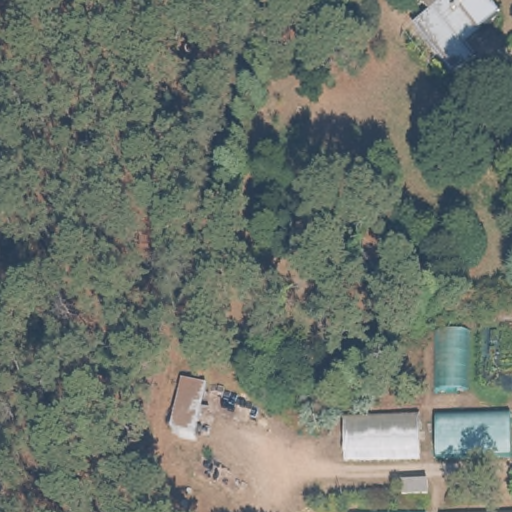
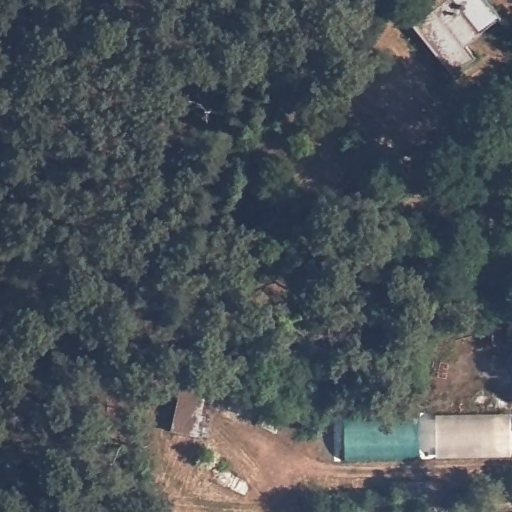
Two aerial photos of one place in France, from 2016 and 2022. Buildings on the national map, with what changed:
unchanged [(469,45),(477,58),(445,82),(402,29),(440,0),(490,0),(502,15),(469,45)]
unchanged [(502,172),(500,131),(512,131),(512,172),(502,172)]
demolished [(442,388),(440,330),(464,329),(466,388),(442,388)]
unchanged [(168,436),(176,377),(207,384),(197,437),(168,436)]
unchanged [(420,413),(420,459),(345,460),(344,418),(420,413)]
unchanged [(512,448),(512,460),(438,460),(436,415),(511,413),(512,448)]
unchanged [(432,498),(403,499),(402,479),(428,478),(432,498)]

